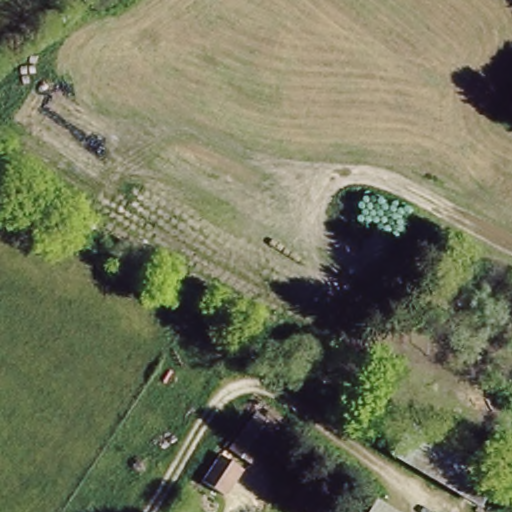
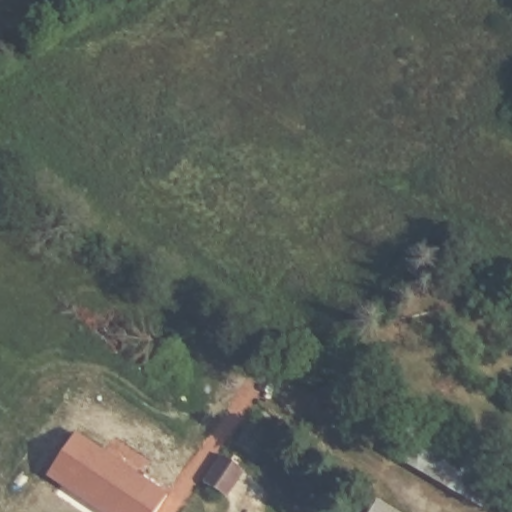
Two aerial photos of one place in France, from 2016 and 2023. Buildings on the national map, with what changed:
unchanged [(500,479),(482,509),(394,459),(412,429),(500,479)]
new [(163,491),(150,512),(105,512),(43,471),(70,430),(163,491)]
new [(218,455),(241,471),(223,497),(200,481),(218,455)]
unchanged [(387,512),(372,512),(376,505),(387,512)]

